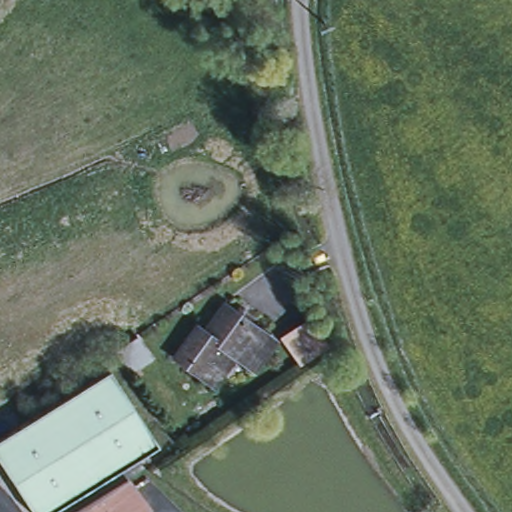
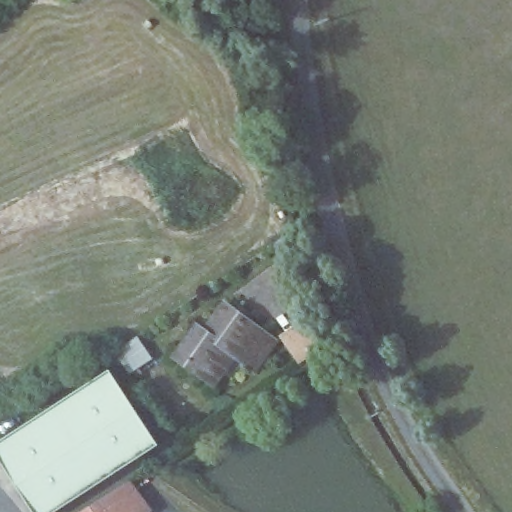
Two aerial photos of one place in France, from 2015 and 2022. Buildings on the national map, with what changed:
unchanged [(250,368),(242,362),(230,354),(216,372),(218,373),(209,385),(169,356),(191,325),(200,331),(218,305),(231,314),(235,309),(245,316),(242,322),(261,335),(268,342),(250,368)]
unchanged [(305,319),(323,344),(297,362),(280,338),(305,319)]
unchanged [(158,446),(56,512),(33,512),(0,462),(0,440),(109,369),(158,446)]
unchanged [(154,508),(148,512),(79,512),(133,478),(154,508)]

